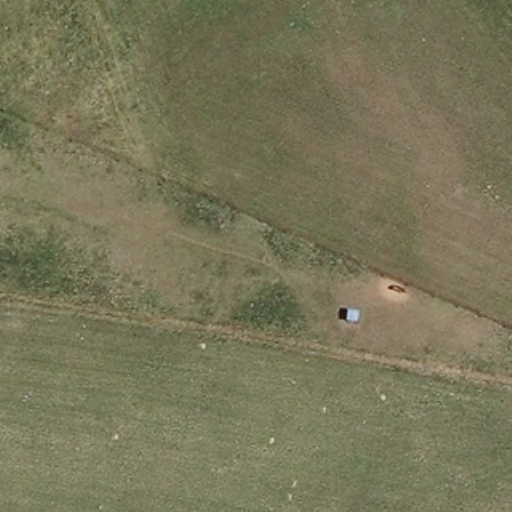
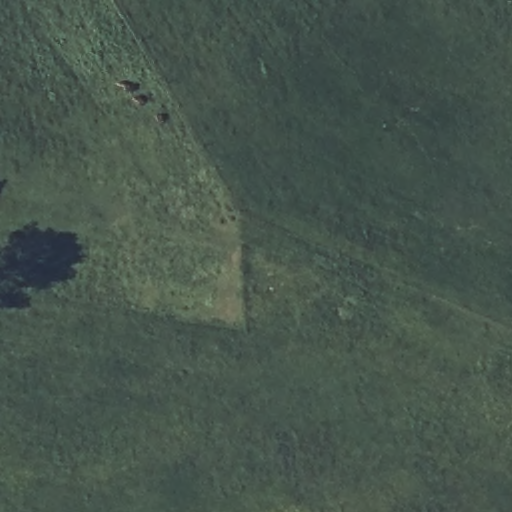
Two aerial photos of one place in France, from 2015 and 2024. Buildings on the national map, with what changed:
[]

